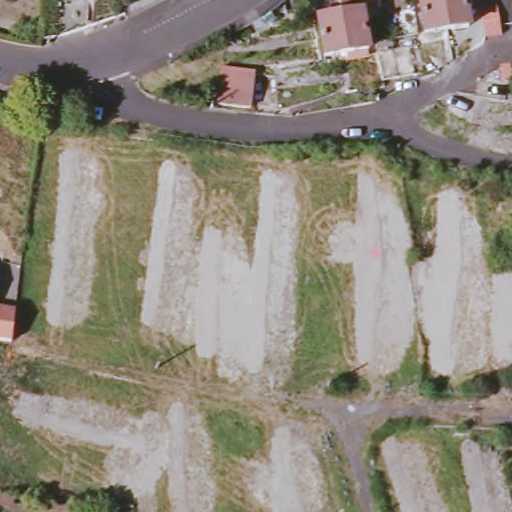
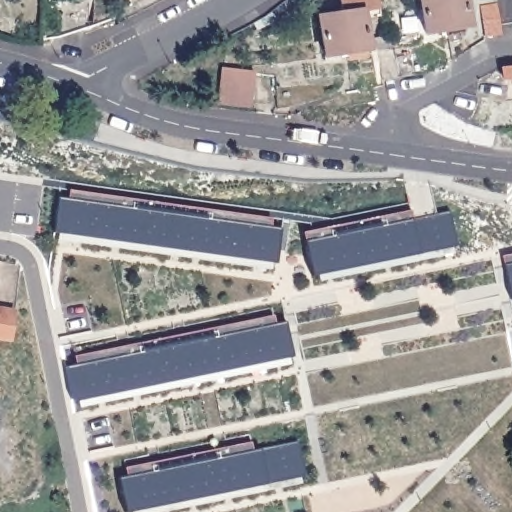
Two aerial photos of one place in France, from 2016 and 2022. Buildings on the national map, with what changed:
unchanged [(318,16),(340,12),(337,0),(378,0),(380,14),(362,17),(367,55),(345,59),(325,61),(318,16)]
unchanged [(467,28),(446,31),(445,31),(425,34),(419,0),(462,0),(467,28)]
unchanged [(480,7),(495,5),(500,35),(484,37),(480,7)]
unchanged [(377,51),(388,50),(392,49),(410,46),(414,76),(397,78),(393,79),(381,81),(377,51)]
unchanged [(500,68),(512,67),(512,81),(501,82),(500,68)]
unchanged [(217,73),(248,76),(244,111),(213,108),(217,73)]
new [(55,233),(59,197),(70,199),(70,190),(272,219),(271,227),(281,228),(276,263),(55,233)]
new [(303,232),(410,210),(411,218),(448,212),(456,246),(418,254),(310,276),(303,232)]
new [(502,265),(500,257),(512,254),(512,299),(509,300),(502,265)]
unchanged [(0,341),(0,311),(14,313),(10,343),(0,341)]
new [(66,367),(76,365),(75,356),(273,314),(276,324),(284,323),(291,356),(72,401),(66,367)]
new [(120,479),(259,450),(297,442),(305,476),(267,483),(125,512),(120,479)]

